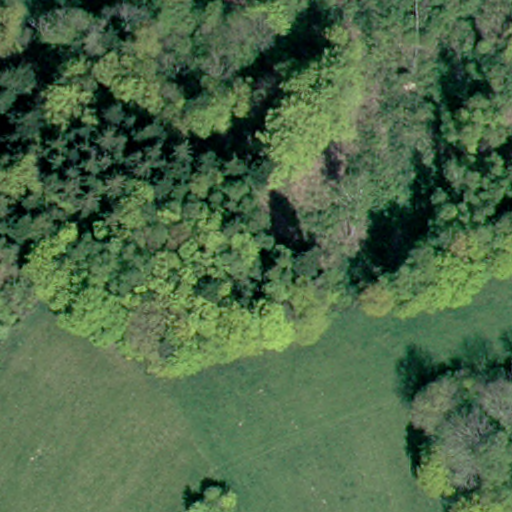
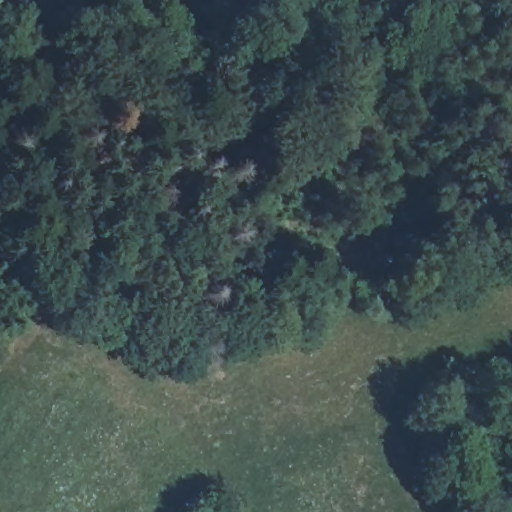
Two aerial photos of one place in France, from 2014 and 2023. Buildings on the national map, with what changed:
unchanged [(294,22),(266,31),(228,42),(213,0),(287,0),(288,2),(294,22)]

